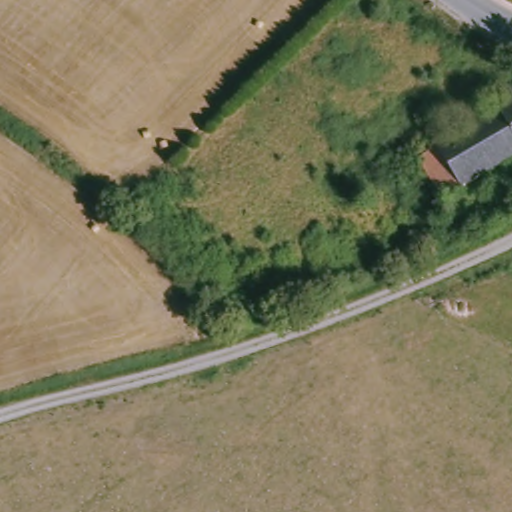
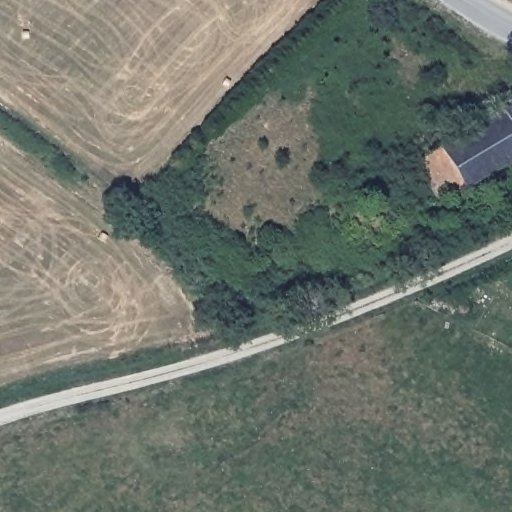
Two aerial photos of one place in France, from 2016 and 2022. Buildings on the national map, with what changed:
unchanged [(442,191),(449,203),(433,211),(425,197),(435,191),(417,151),(512,96),(512,150),(442,191)]

